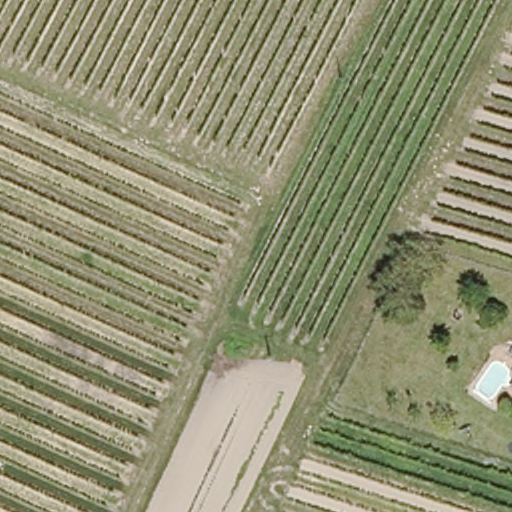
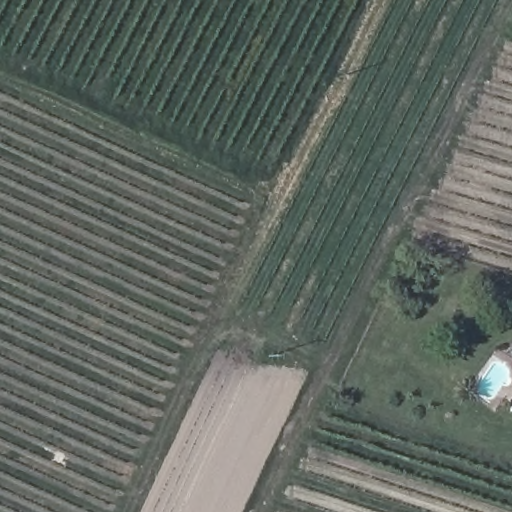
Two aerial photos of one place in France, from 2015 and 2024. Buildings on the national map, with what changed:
[]

